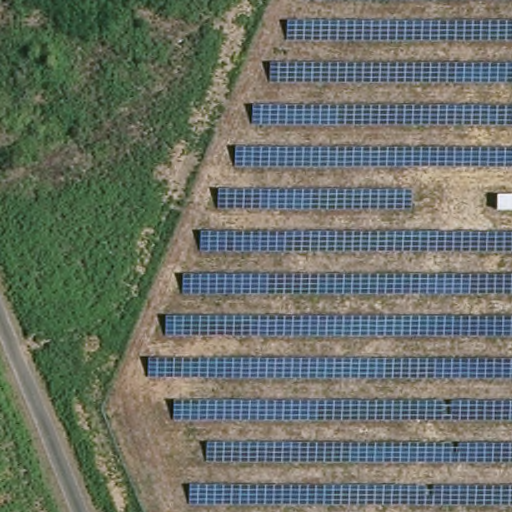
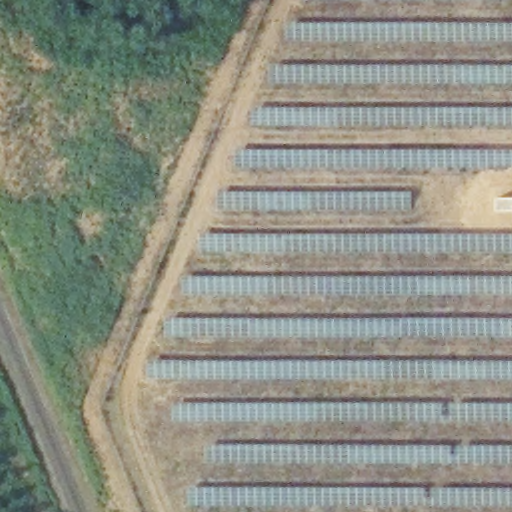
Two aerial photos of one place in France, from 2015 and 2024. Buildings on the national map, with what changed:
unchanged [(496,194),(512,194),(512,213),(495,214),(496,194)]

